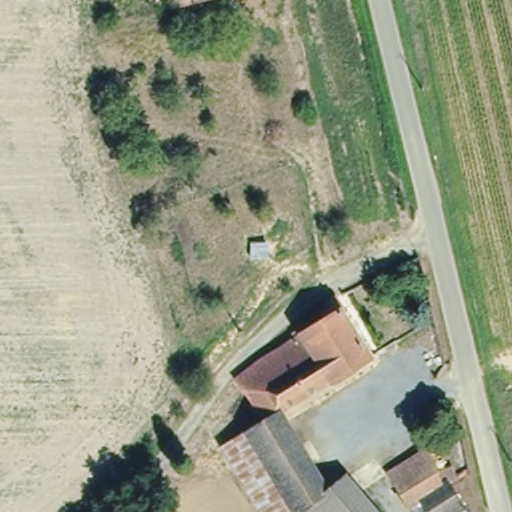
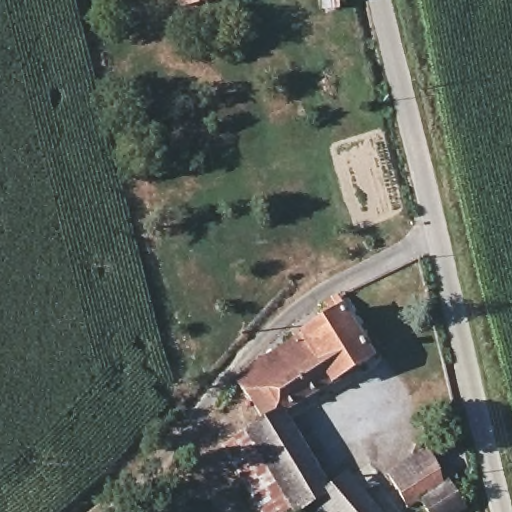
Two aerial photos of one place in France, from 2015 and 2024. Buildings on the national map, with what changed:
unchanged [(194,0),(180,3),(180,0),(194,0)]
unchanged [(272,347),(325,315),(321,307),(325,304),(324,299),(335,294),(342,305),(338,309),(366,351),(279,408),(328,487),(356,470),(381,512),(298,512),(294,510),(291,512),(263,512),(222,444),(263,416),(234,377),(272,347)]
unchanged [(385,475),(425,449),(437,475),(449,466),(453,478),(444,483),(462,509),(458,512),(410,512),(407,508),(385,475)]

